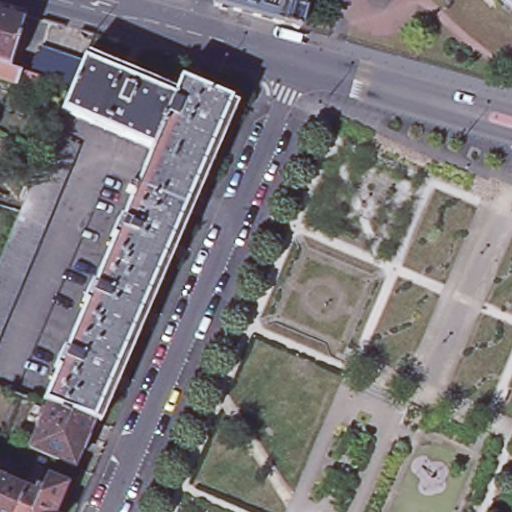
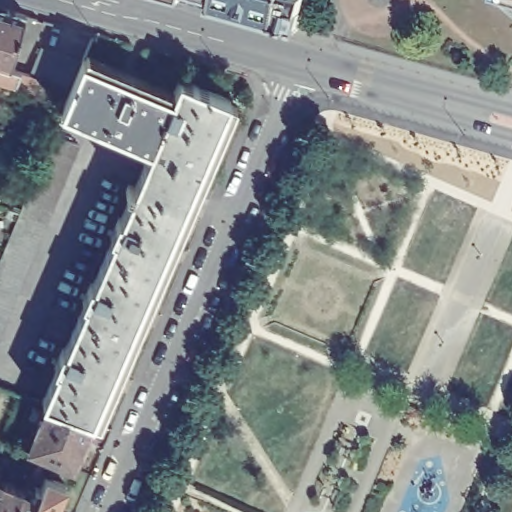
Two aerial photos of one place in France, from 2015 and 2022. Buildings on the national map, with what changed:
unchanged [(204,0),(217,0),(216,4),(204,0)]
unchanged [(280,21),(216,4),(217,0),(307,0),(305,9),(300,27),(280,21)]
unchanged [(83,61),(72,89),(32,78),(28,91),(0,82),(0,10),(25,17),(10,71),(30,76),(40,48),(83,61)]
unchanged [(173,99),(151,151),(62,113),(72,89),(83,61),(84,60),(173,99)]
unchanged [(143,169),(151,151),(173,99),(175,97),(173,96),(180,80),(232,103),(194,191),(143,169)]
unchanged [(11,239),(17,225),(20,220),(24,208),(26,204),(33,186),(35,182),(37,176),(47,155),(52,143),(78,153),(72,166),(67,179),(62,193),(56,206),(50,219),(45,234),(44,236),(38,250),(32,264),(27,278),(20,292),(15,304),(15,305),(11,315),(5,330),(0,341),(0,266),(5,253),(11,239)]
unchanged [(143,169),(194,191),(185,210),(135,188),(143,169)]
unchanged [(185,210),(157,277),(107,256),(113,240),(110,239),(118,220),(122,221),(135,188),(185,210)]
unchanged [(79,321),(86,304),(83,303),(90,286),(93,287),(107,256),(157,277),(128,342),(79,321)]
unchanged [(57,372),(54,370),(62,351),(65,353),(79,321),(128,342),(104,398),(93,424),(47,407),(42,405),(57,372)]
unchanged [(93,424),(86,440),(88,441),(82,454),(81,453),(73,470),(38,455),(29,451),(36,433),(30,431),(35,419),(42,422),(47,407),(93,424)]
unchanged [(0,475),(6,478),(3,483),(23,491),(15,512),(0,512),(0,475)]
unchanged [(23,491),(33,495),(36,489),(40,491),(45,480),(66,488),(56,512),(15,512),(23,491)]

